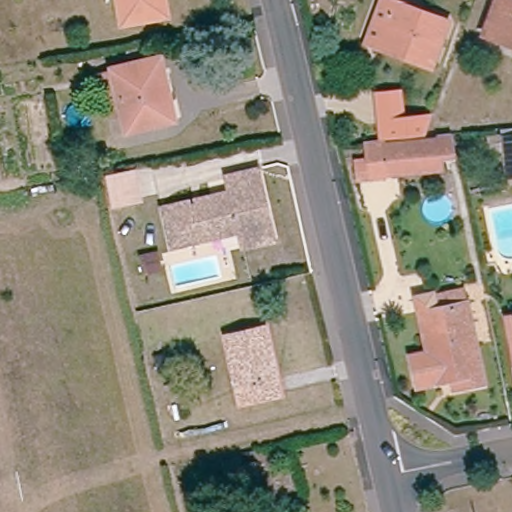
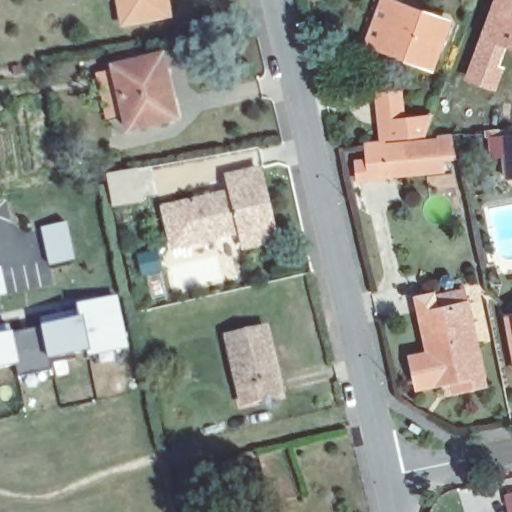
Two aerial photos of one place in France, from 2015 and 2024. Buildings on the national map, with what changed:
unchanged [(116,0),(163,0),(165,15),(120,22),(116,0)]
unchanged [(379,53),(364,48),(361,46),(377,0),(389,0),(446,22),(431,62),(427,72),(379,53)]
unchanged [(495,1),(500,0),(512,5),(512,51),(480,40),(495,1)]
unchanged [(116,132),(103,71),(145,62),(155,61),(162,104),(166,122),(116,132)]
unchanged [(384,171),(382,160),(380,137),(430,132),(438,132),(441,155),(442,166),(384,171)]
unchanged [(503,174),(499,146),(512,144),(512,172),(503,174)]
unchanged [(140,195),(113,200),(106,171),(133,165),(140,195)]
unchanged [(272,250),(241,256),(239,256),(236,237),(167,250),(160,210),(228,197),(226,186),(226,185),(226,184),(259,179),(272,250)]
unchanged [(153,247),(155,249),(159,267),(147,270),(144,268),(140,250),(153,247)]
new [(0,293),(0,266),(5,292),(0,293)]
unchanged [(457,373),(423,381),(419,355),(433,352),(434,349),(423,299),(424,297),(440,293),(466,287),(469,300),(488,382),(469,386),(460,387),(457,373)]
new [(48,358),(50,367),(18,376),(16,362),(0,366),(0,324),(7,322),(10,331),(39,325),(39,315),(116,296),(126,347),(48,358)]
unchanged [(503,320),(512,318),(512,361),(503,320)]
unchanged [(263,322),(265,324),(270,345),(264,346),(266,357),(273,359),(281,396),(240,404),(236,404),(221,331),(263,322)]
unchanged [(249,483),(262,482),(267,507),(265,509),(251,512),(239,512),(232,478),(247,476),(249,483)]

